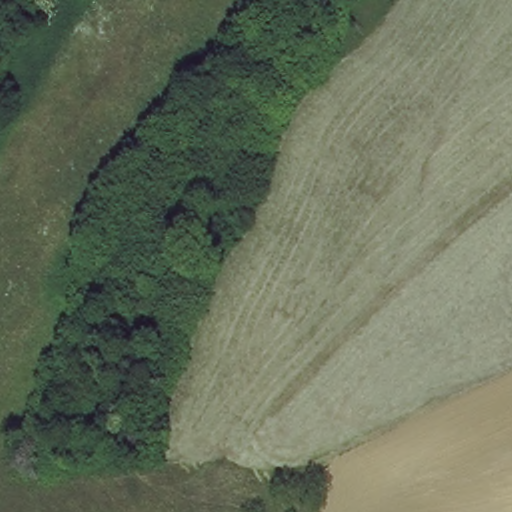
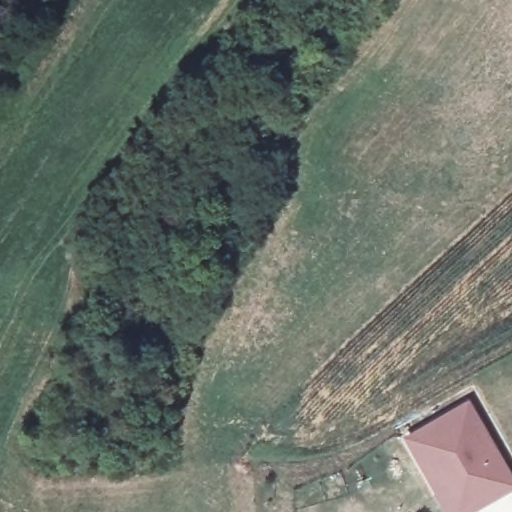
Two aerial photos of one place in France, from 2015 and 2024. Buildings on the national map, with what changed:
new [(512,475),(512,489),(472,512),(443,512),(402,437),(467,399),(512,475)]

